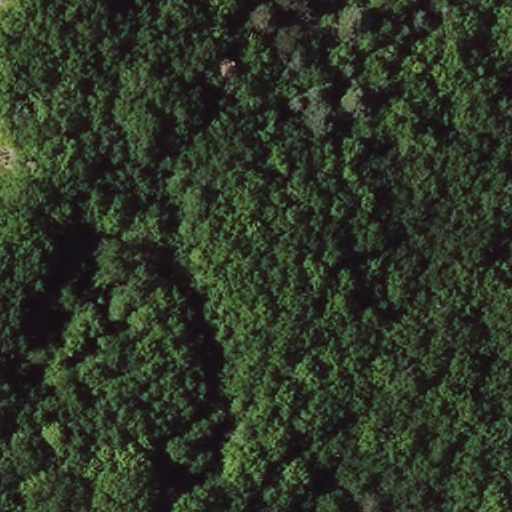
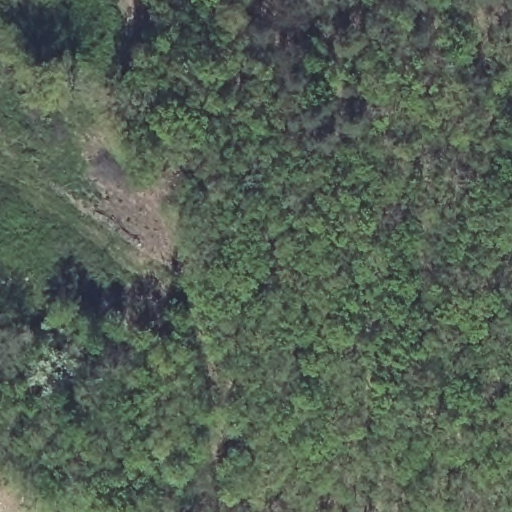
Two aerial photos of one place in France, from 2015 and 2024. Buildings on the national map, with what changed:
[]

